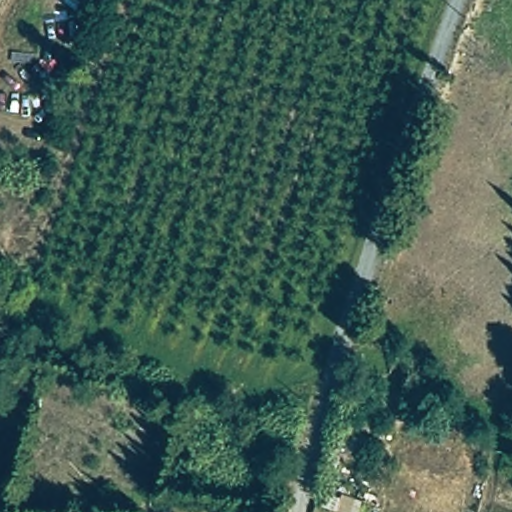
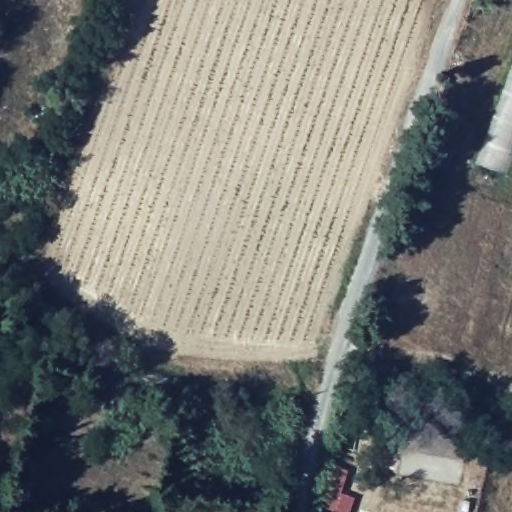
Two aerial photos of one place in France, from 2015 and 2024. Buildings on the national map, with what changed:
new [(477,165),(512,72),(512,168),(509,176),(477,165)]

